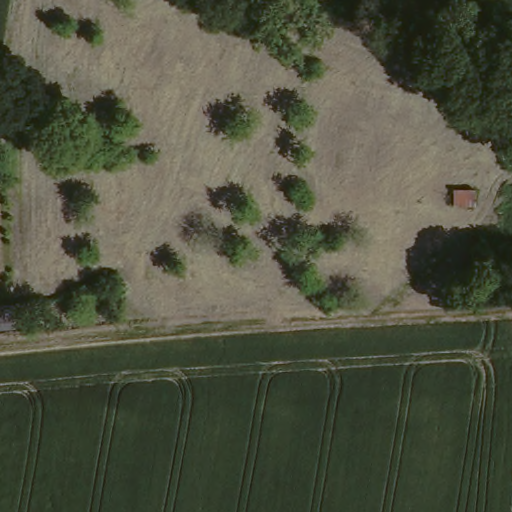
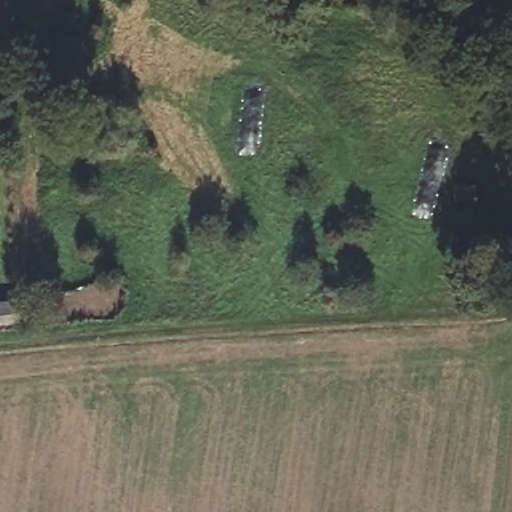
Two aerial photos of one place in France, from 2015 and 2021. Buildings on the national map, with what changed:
unchanged [(21,321),(0,323),(0,304),(19,302),(21,321)]

